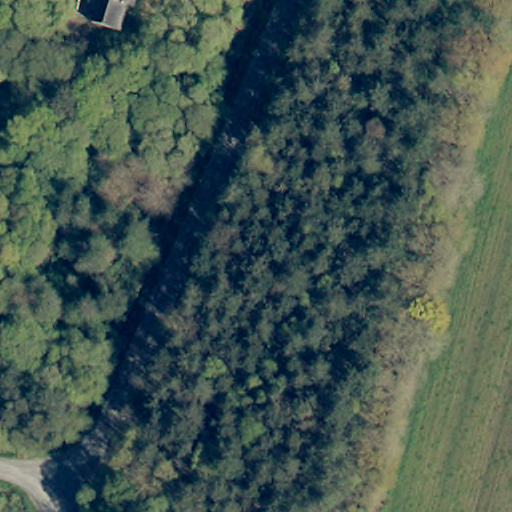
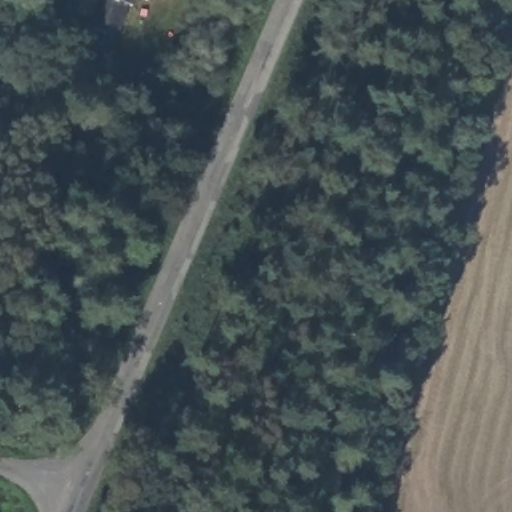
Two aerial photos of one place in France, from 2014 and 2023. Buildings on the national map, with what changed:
unchanged [(134,7),(129,5),(121,32),(91,23),(98,0),(136,0),(134,7)]

